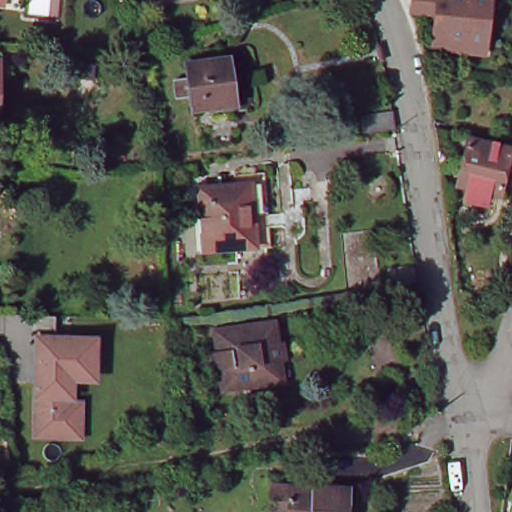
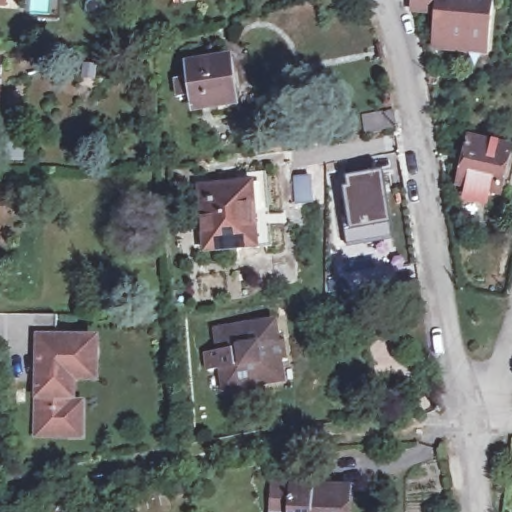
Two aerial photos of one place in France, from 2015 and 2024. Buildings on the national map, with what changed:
unchanged [(435,50),(440,9),(415,6),(415,0),(492,0),(491,13),(488,44),(487,55),(453,52),(435,50)]
unchanged [(161,30),(164,41),(150,45),(146,34),(161,30)]
unchanged [(194,77),(193,64),(232,59),(239,104),(199,109),(197,95),(182,97),(179,80),(194,77)]
unchanged [(361,115),(392,110),(395,128),(364,133),(361,115)]
unchanged [(475,132),(512,141),(512,163),(506,190),(498,187),(490,197),(478,194),(477,183),(464,180),(475,132)]
unchanged [(206,249),(199,186),(236,182),(235,175),(264,172),(271,244),(256,245),(206,249)]
new [(379,194),(385,194),(392,239),(343,246),(339,219),(344,217),(339,189),(343,187),(341,178),(363,174),(376,172),(379,194)]
demolished [(420,280),(387,285),(385,268),(417,263),(420,280)]
demolished [(423,304),(399,307),(396,291),(421,287),(423,304)]
unchanged [(38,320),(52,320),(52,335),(29,335),(29,319),(38,320)]
unchanged [(210,349),(222,348),(219,323),(244,320),(244,323),(277,319),(279,335),(270,337),(273,356),(282,355),(284,373),(251,377),(252,383),(227,385),(223,362),(212,364),(210,349)]
unchanged [(88,345),(87,378),(65,378),(64,438),(33,437),(35,344),(88,345)]
unchanged [(324,498),(353,501),(352,512),(279,512),(281,489),(289,490),(324,492),(324,498)]

